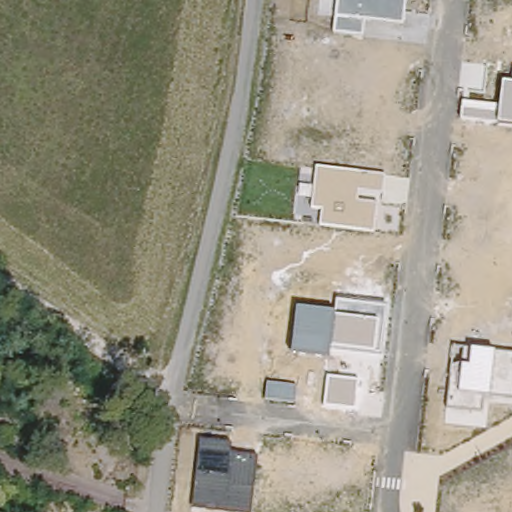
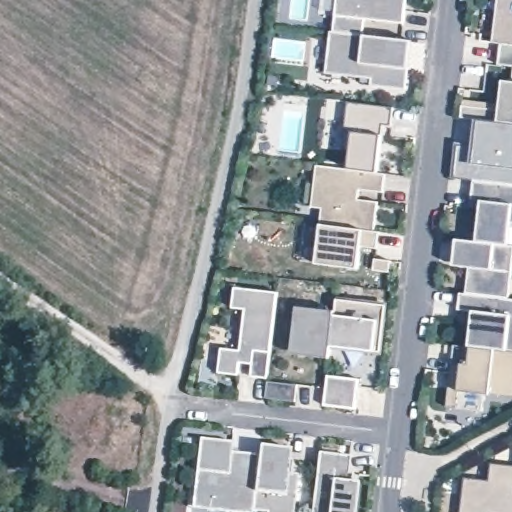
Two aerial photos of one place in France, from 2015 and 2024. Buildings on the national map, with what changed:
unchanged [(338,0),(406,0),(404,25),(365,20),(363,35),(334,32),(336,16),(338,0)]
new [(499,66),(503,42),(494,41),(497,0),(512,0),(512,68),(499,66)]
new [(410,40),(407,68),(405,90),(370,86),(372,77),(327,71),(331,31),(334,32),(363,35),(410,40)]
unchanged [(462,100),(500,104),(502,81),(512,82),(512,126),(497,123),(460,117),(462,100)]
new [(352,148),(343,147),(350,103),(394,108),(393,124),(384,123),(383,135),(378,174),(350,170),(352,148)]
new [(474,142),(477,120),(497,123),(512,126),(512,185),(472,180),(452,179),(457,143),(474,142)]
unchanged [(316,166),(387,175),(385,193),(359,190),(358,199),(378,202),(374,232),(320,225),(322,208),(312,207),(316,166)]
unchanged [(512,185),(512,226),(509,225),(507,244),(475,241),(479,209),(469,207),(470,200),(472,180),(512,185)]
new [(376,249),(360,247),(358,269),(316,264),(320,225),(374,232),(378,232),(376,249)]
new [(507,244),(512,246),(512,263),(508,296),(466,292),(469,265),(455,264),(457,239),(475,241),(507,244)]
new [(390,261),(389,273),(373,271),(374,259),(390,261)]
new [(221,347),(240,349),(245,308),(232,307),(235,285),(278,290),(268,378),(251,376),(252,363),(240,362),(238,375),(218,372),(221,347)]
new [(471,312),(456,309),(458,293),(466,292),(508,296),(512,297),(512,352),(467,346),(471,312)]
unchanged [(297,306),(334,310),(335,299),(385,304),(380,352),(374,351),(372,352),(332,346),(330,359),(291,353),(297,306)]
unchanged [(454,345),(467,346),(512,352),(512,398),(490,395),(482,395),(482,410),(447,407),(454,345)]
unchanged [(328,376),(359,380),(355,409),(324,404),(328,376)]
unchanged [(267,381),(297,384),(295,401),(265,398),(267,381)]
unchanged [(202,438),(233,442),(232,451),(258,454),(252,512),(243,512),(194,506),(202,438)]
new [(259,445),(291,449),(288,474),(296,476),(292,512),(267,512),(268,510),(252,508),(254,491),(258,454),(259,445)]
unchanged [(347,458),(345,475),(350,475),(357,476),(355,485),(353,512),(310,512),(316,455),(347,458)]
new [(464,480),(489,483),(490,465),(512,468),(512,512),(461,512),(464,480)]

